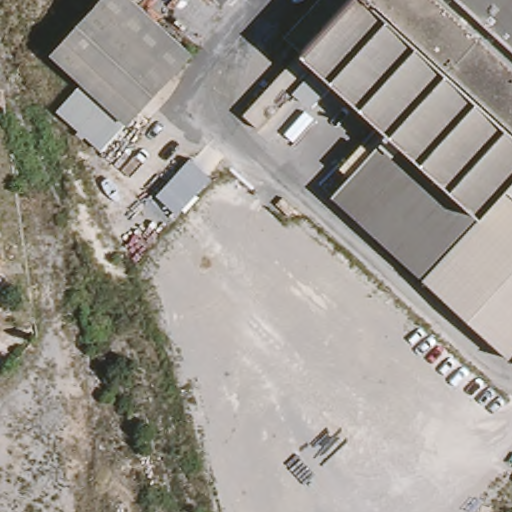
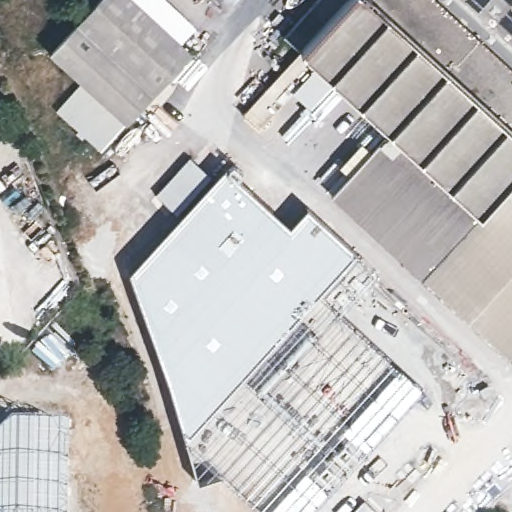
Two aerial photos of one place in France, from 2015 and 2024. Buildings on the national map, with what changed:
unchanged [(193,46),(127,118),(51,48),(96,0),(143,0),(193,46)]
unchanged [(510,359),(330,197),(387,133),(315,66),(257,128),(242,112),(299,51),(282,34),(314,0),(436,0),(512,68),(512,357),(510,359)]
unchanged [(436,0),(512,0),(512,68),(436,0)]
unchanged [(100,149),(56,112),(85,79),(127,118),(100,149)]
unchanged [(190,157),(212,177),(179,214),(157,194),(190,157)]
new [(222,165),(290,226),(304,210),(374,273),(339,312),(425,388),(312,512),(261,512),(220,475),(197,482),(175,406),(162,364),(144,316),(128,272),(179,214),(212,177),(222,165)]
new [(67,422),(67,512),(0,512),(0,428),(9,421),(67,422)]

